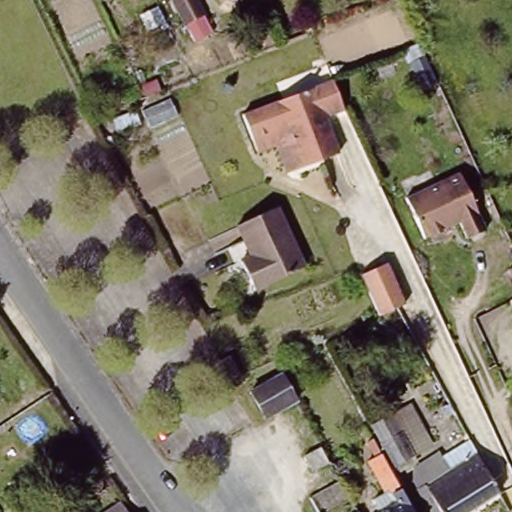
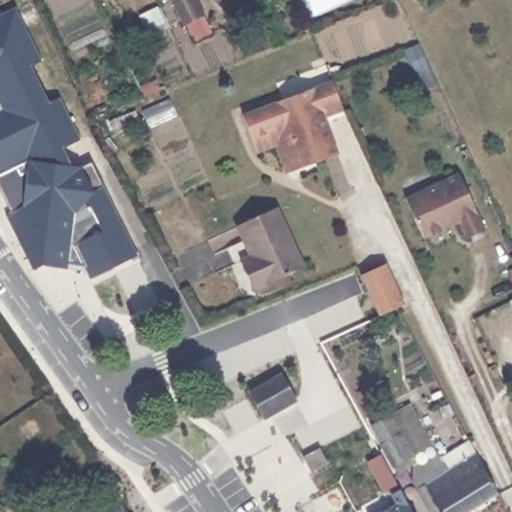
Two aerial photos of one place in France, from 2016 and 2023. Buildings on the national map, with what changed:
unchanged [(205,18),(186,27),(173,0),(196,0),(205,18)]
new [(90,278),(86,270),(39,264),(35,270),(6,212),(11,211),(0,188),(0,14),(16,6),(41,60),(31,65),(49,102),(60,96),(80,139),(56,150),(63,164),(80,166),(92,160),(137,255),(90,278)]
unchanged [(441,85),(428,90),(416,66),(429,60),(441,85)]
unchanged [(298,172),(289,148),(258,160),(253,143),(243,119),(333,86),(344,116),(324,124),(328,133),(337,158),(298,172)]
unchanged [(486,229),(468,236),(460,221),(424,236),(407,196),(459,171),(486,229)]
unchanged [(306,271),(253,297),(239,262),(248,258),(238,230),(280,212),(306,271)]
unchanged [(405,304),(397,307),(381,315),(361,275),(387,265),(405,304)]
unchanged [(291,405),(262,420),(249,395),(278,380),(291,405)]
unchanged [(420,446),(400,457),(386,432),(407,420),(420,446)]
unchanged [(366,463),(371,460),(368,453),(370,452),(368,447),(373,444),(409,512),(372,512),(368,503),(381,496),(366,463)]
unchanged [(475,512),(437,512),(414,471),(437,460),(439,463),(469,446),(498,498),(475,512)]
unchanged [(124,512),(110,512),(119,505),(124,512)]

